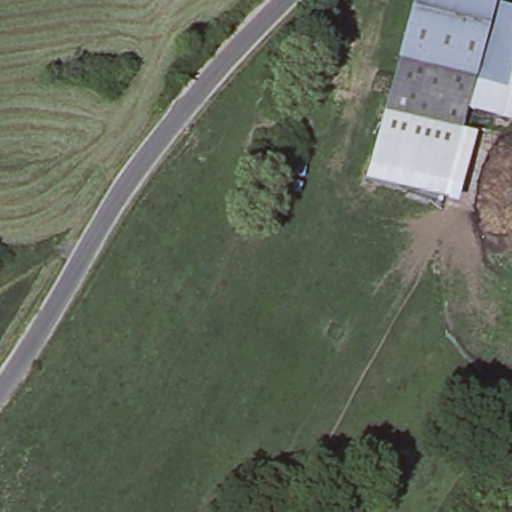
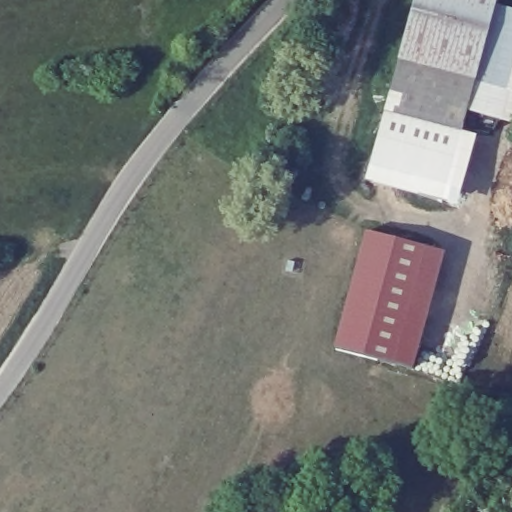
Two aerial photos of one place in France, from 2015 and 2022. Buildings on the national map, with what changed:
unchanged [(500,0),(498,7),(512,11),(512,94),(505,125),(467,115),(442,206),(363,183),(414,0),(500,0)]
new [(505,125),(512,94),(512,126),(505,125)]
new [(414,368),(335,347),(366,232),(445,252),(414,368)]

